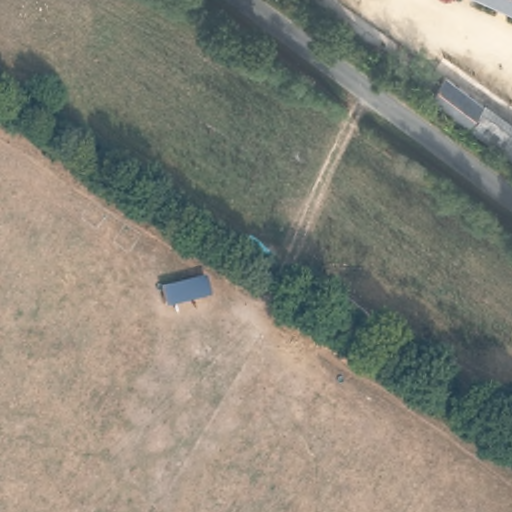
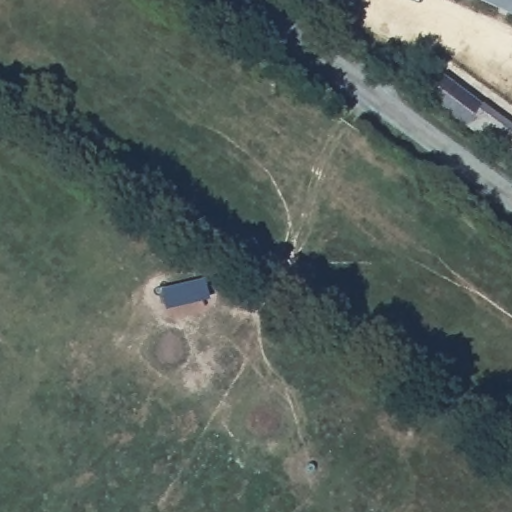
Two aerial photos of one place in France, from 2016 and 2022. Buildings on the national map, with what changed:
unchanged [(512,0),(512,14),(480,0),(512,0)]
unchanged [(431,84),(441,90),(446,83),(486,106),(483,112),(512,129),(512,154),(421,100),(431,84)]

